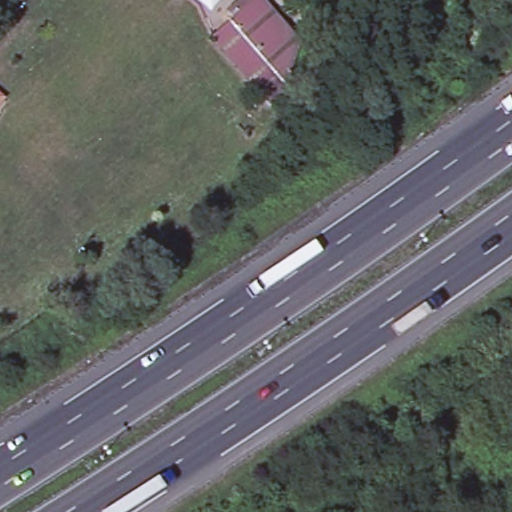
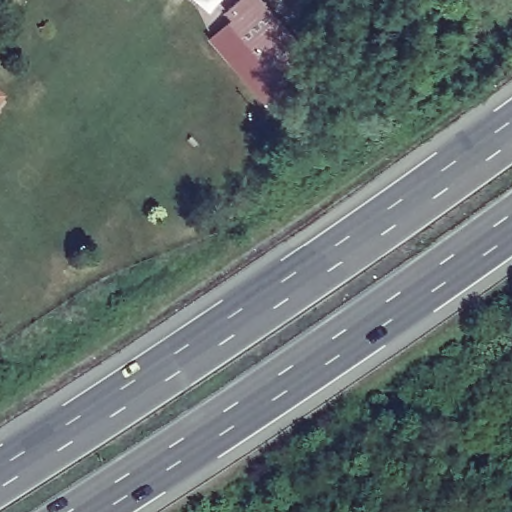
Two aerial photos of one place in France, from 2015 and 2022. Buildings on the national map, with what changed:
unchanged [(255,0),(267,0),(305,39),(292,89),(267,103),(213,38),(255,0)]
unchanged [(290,141),(292,124),(317,127),(315,144),(290,141)]

